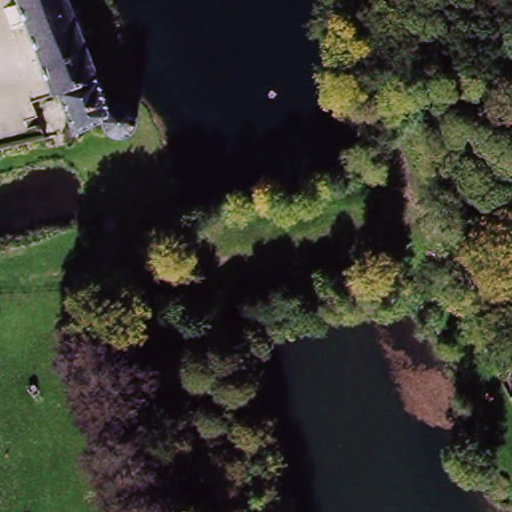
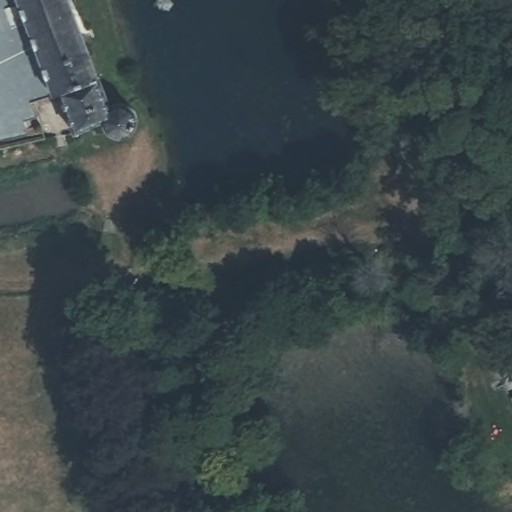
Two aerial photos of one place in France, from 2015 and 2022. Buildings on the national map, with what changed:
unchanged [(112,136),(105,127),(67,134),(40,71),(14,0),(71,0),(106,104),(120,103),(139,106),(140,111),(138,125),(129,135),(112,136)]

